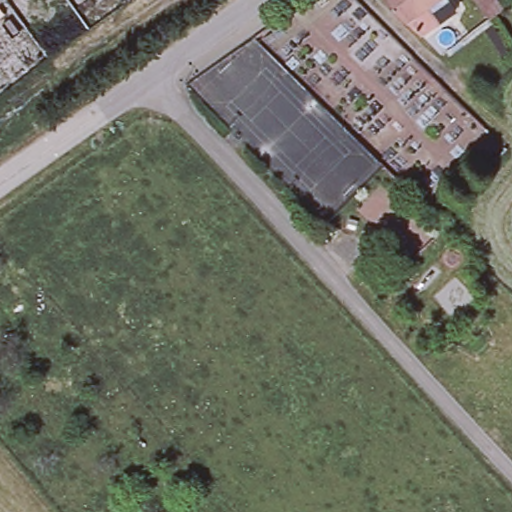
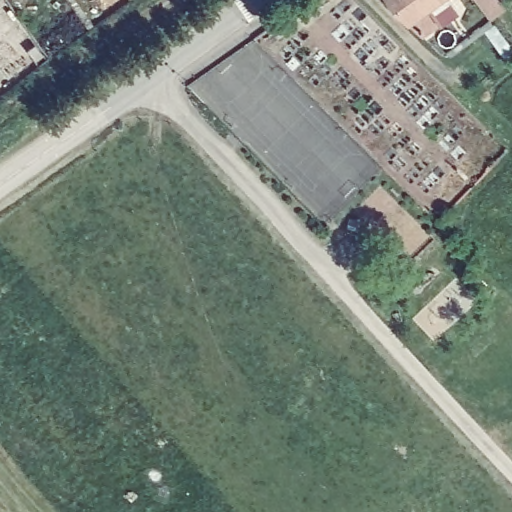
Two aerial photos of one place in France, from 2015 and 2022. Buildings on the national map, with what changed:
unchanged [(437,22),(442,30),(426,44),(385,0),(466,0),(437,22)]
unchanged [(508,12),(494,24),(478,0),(501,0),(508,12)]

